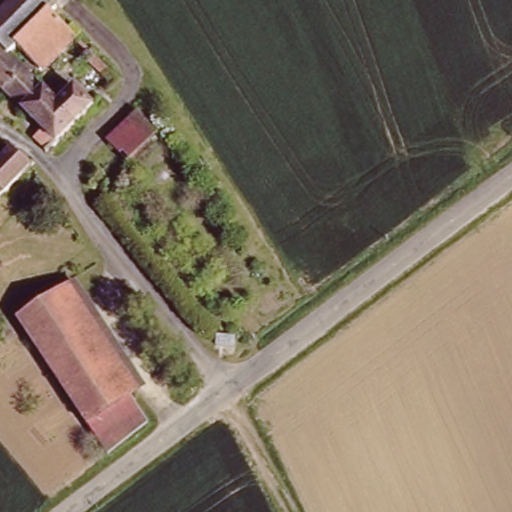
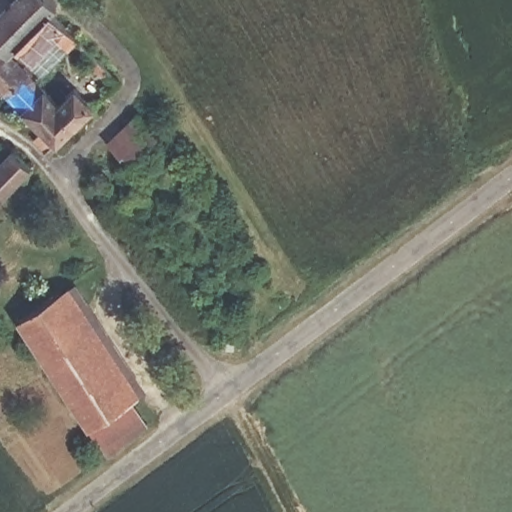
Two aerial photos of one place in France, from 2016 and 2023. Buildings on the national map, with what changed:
unchanged [(40,0),(53,14),(48,19),(16,47),(8,54),(0,46),(0,12),(12,0),(40,0)]
unchanged [(48,19),(69,42),(40,70),(31,61),(16,47),(48,19)]
unchanged [(8,54),(23,69),(0,91),(0,90),(0,46),(8,54)]
unchanged [(90,64),(113,89),(108,94),(84,69),(90,64)]
unchanged [(23,69),(46,94),(53,88),(62,95),(69,89),(85,106),(38,150),(26,139),(36,129),(0,91),(23,69)]
unchanged [(143,101),(167,130),(126,174),(96,145),(143,101)]
unchanged [(10,154),(26,170),(0,196),(0,163),(10,154)]
unchanged [(69,286),(141,388),(126,398),(86,428),(17,326),(69,286)]
unchanged [(126,398),(144,422),(104,453),(86,428),(126,398)]

